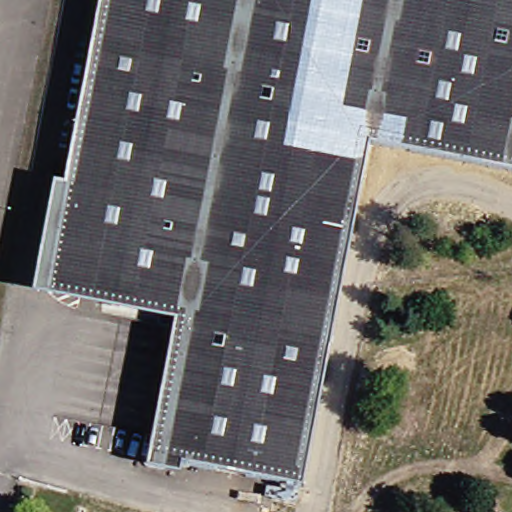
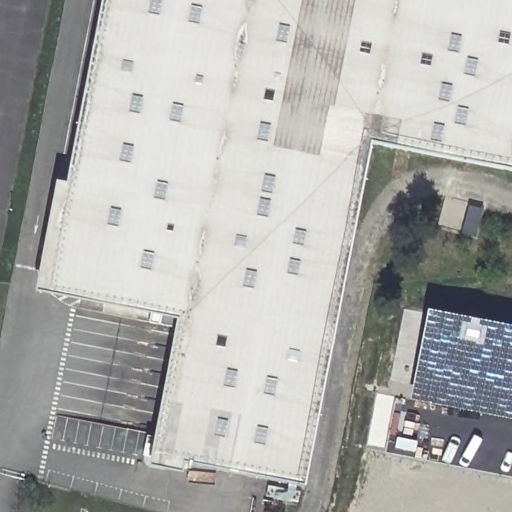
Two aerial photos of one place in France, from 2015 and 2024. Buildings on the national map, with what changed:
unchanged [(512,172),(368,144),(299,486),(154,457),(184,310),(136,300),(79,287),(76,286),(69,283),(64,278),(59,273),(55,267),(52,260),(50,253),(49,245),(50,238),(98,0),(512,0),(512,172)]
new [(425,311),(512,328),(512,420),(409,401),(425,311)]

